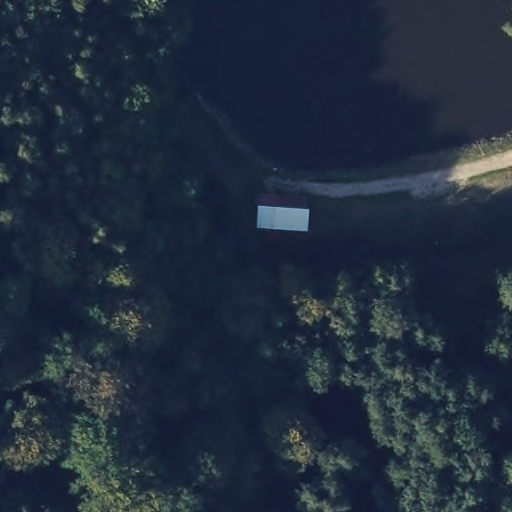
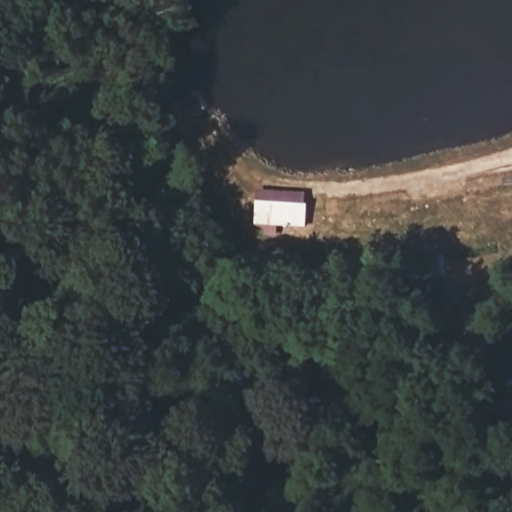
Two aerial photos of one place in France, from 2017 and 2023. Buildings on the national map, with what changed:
unchanged [(257,227),(258,201),(314,205),(309,230),(257,227)]

